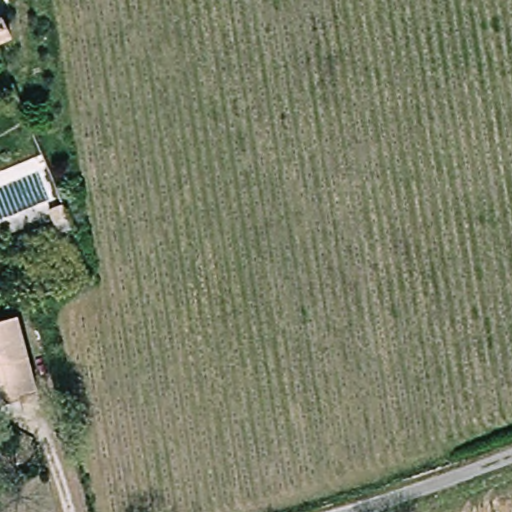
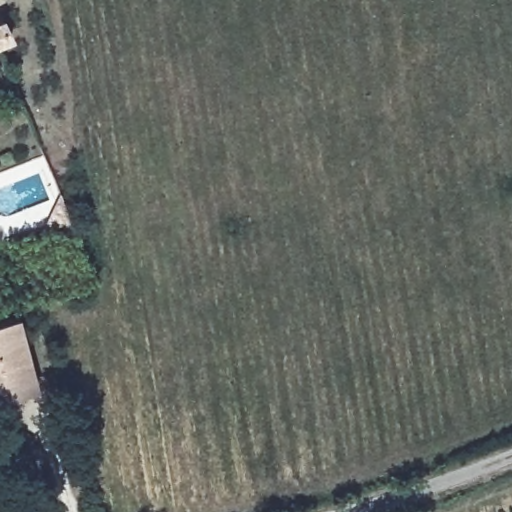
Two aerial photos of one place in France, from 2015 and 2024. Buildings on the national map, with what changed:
unchanged [(0,41),(0,20),(3,19),(11,36),(0,41)]
unchanged [(43,385),(18,391),(19,396),(0,401),(0,320),(24,314),(43,385)]

